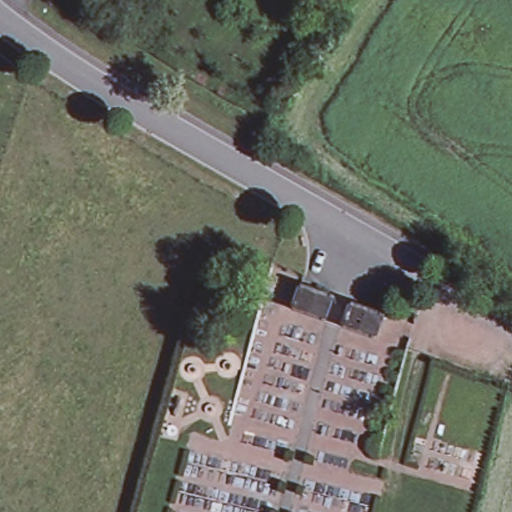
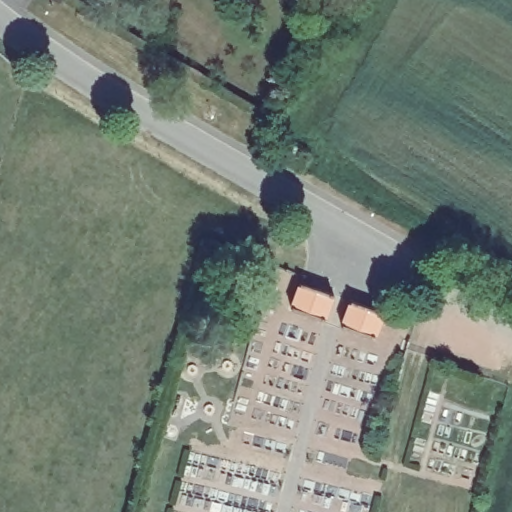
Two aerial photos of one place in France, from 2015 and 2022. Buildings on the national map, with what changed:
unchanged [(328,318),(294,305),(302,286),(305,287),(334,298),(328,318)]
unchanged [(374,336),(341,325),(348,304),(378,315),(381,316),(374,336)]

